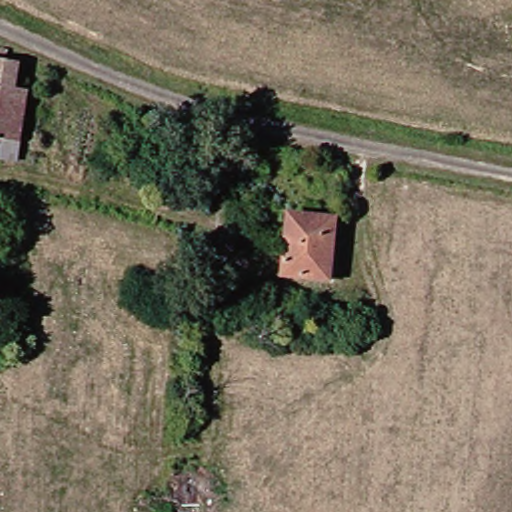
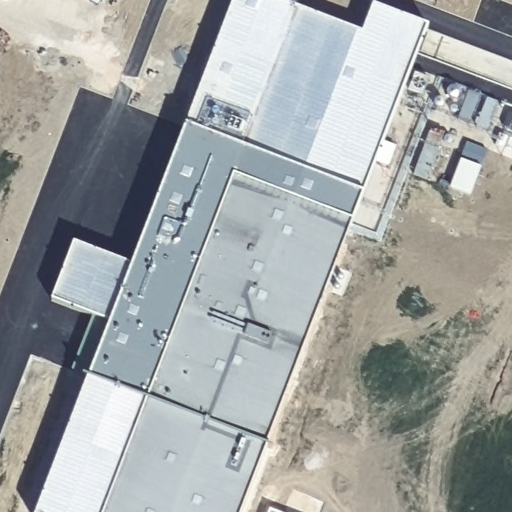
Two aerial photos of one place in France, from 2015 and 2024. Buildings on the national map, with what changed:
new [(352,222),(234,177),(104,512),(36,512),(86,378),(91,315),(50,300),(72,242),(132,264),(185,125),(233,0),(278,0),(362,32),(373,4),(428,26),(363,192),(352,222)]
demolished [(1,52),(10,53),(10,60),(20,63),(19,87),(29,89),(20,143),(0,140),(0,60),(1,52)]
new [(433,128),(446,133),(430,179),(416,174),(433,128)]
new [(463,158),(482,165),(472,194),(453,187),(463,158)]
new [(352,222),(241,512),(104,512),(234,177),(352,222)]
demolished [(295,213),(340,218),(336,279),(288,275),(295,213)]
new [(269,511),(272,512),(269,512),(269,511)]

